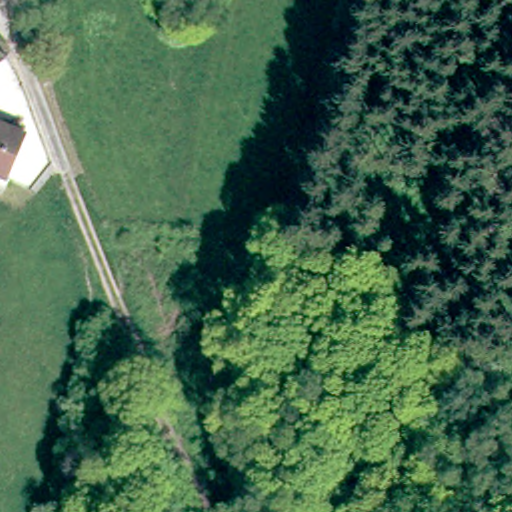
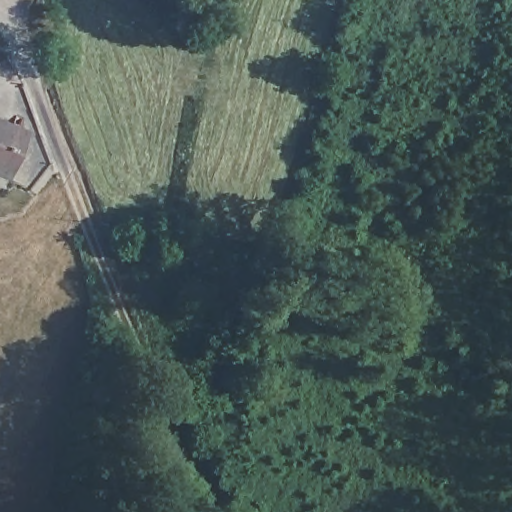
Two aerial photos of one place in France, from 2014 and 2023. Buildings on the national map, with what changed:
unchanged [(0,173),(0,121),(24,131),(5,175),(0,173)]

